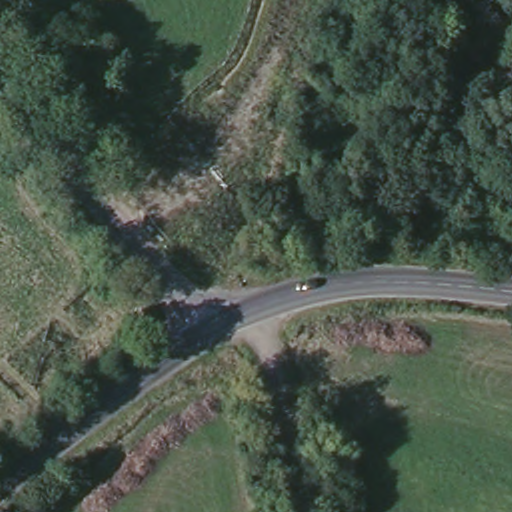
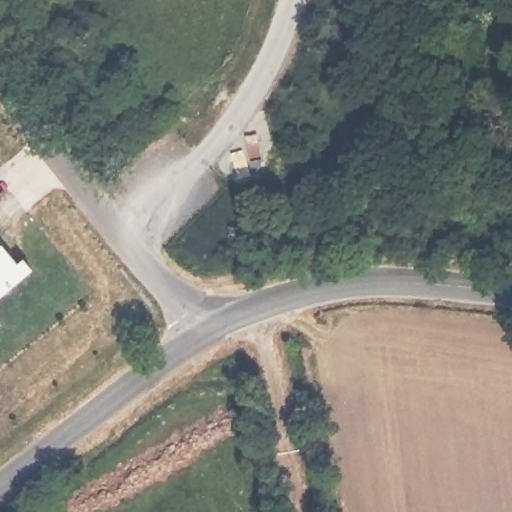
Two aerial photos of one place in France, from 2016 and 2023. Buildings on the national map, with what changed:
new [(5,245),(17,262),(25,258),(37,272),(0,301),(0,249),(5,245)]

